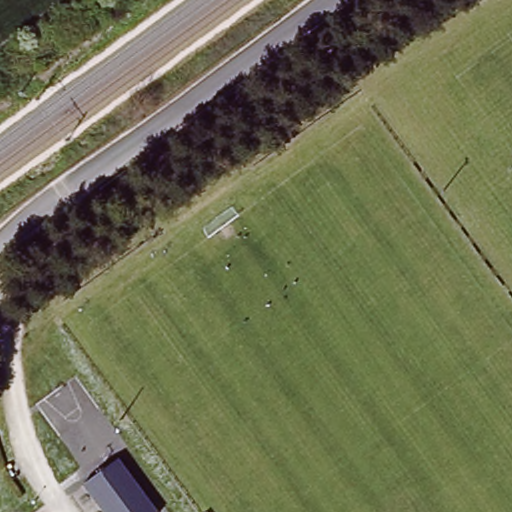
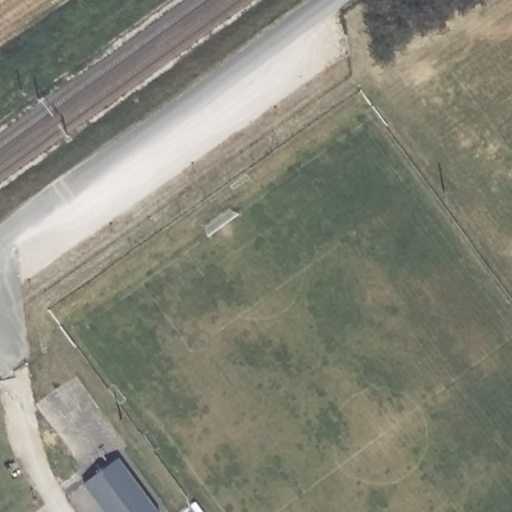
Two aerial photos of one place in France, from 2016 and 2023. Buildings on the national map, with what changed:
unchanged [(158,512),(106,512),(85,484),(120,459),(158,512)]

